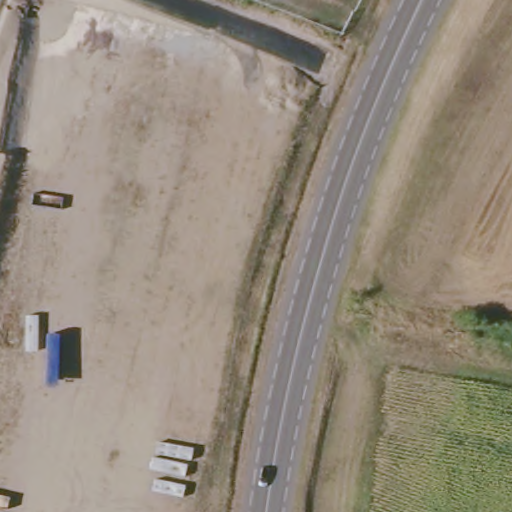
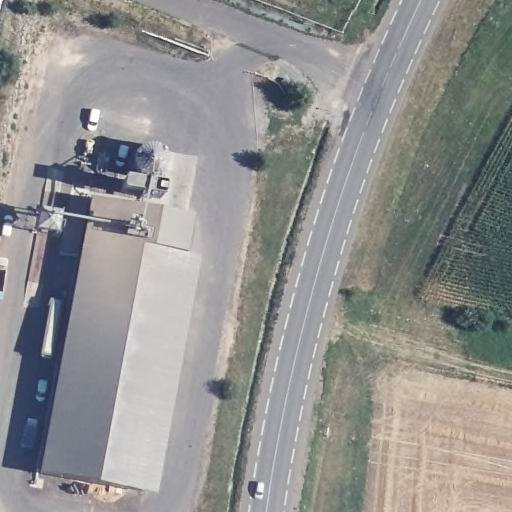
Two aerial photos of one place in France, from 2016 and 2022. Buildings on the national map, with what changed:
new [(161,150),(166,157),(167,165),(163,174),(156,180),(147,182),(140,180),(134,175),(132,169),(132,160),(136,153),(143,148),(161,150)]
new [(122,178),(161,185),(159,197),(120,190),(122,178)]
new [(39,473),(78,258),(58,253),(69,196),(91,200),(191,219),(184,255),(199,258),(156,495),(39,473)]

